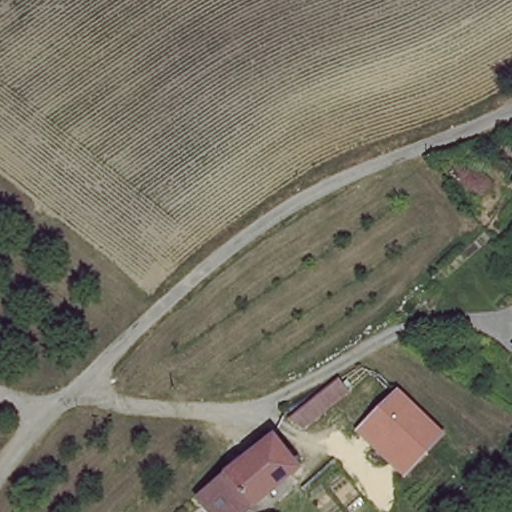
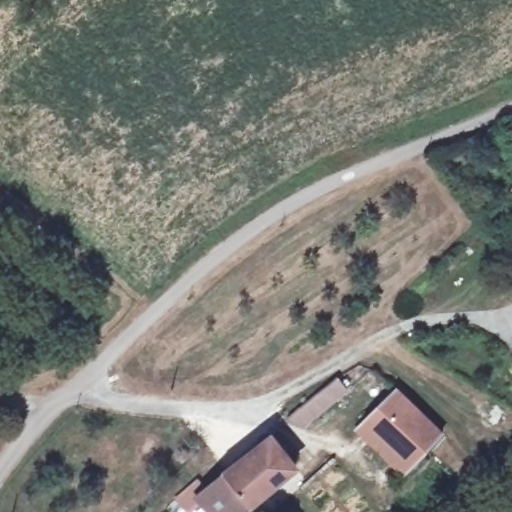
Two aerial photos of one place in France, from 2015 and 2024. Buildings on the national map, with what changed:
unchanged [(512,344),(512,348),(510,346),(512,344)]
unchanged [(332,380),(339,387),(296,428),(287,419),(332,380)]
unchanged [(383,409),(400,392),(439,431),(430,441),(424,447),(383,409)]
unchanged [(424,447),(429,452),(406,472),(363,430),(383,409),(424,447)]
unchanged [(263,441),(289,468),(250,503),(258,512),(205,512),(196,501),(263,441)]

